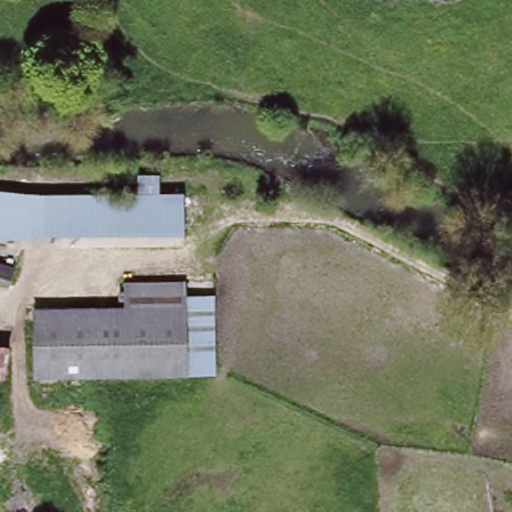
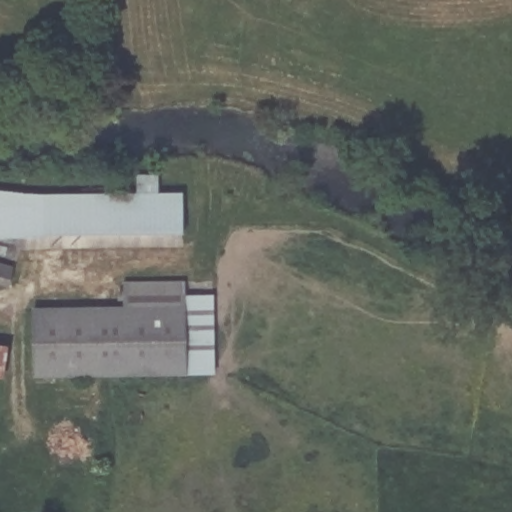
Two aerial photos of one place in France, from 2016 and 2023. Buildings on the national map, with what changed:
unchanged [(178,228),(0,244),(0,200),(173,185),(178,228)]
unchanged [(10,293),(0,290),(0,273),(14,277),(10,293)]
unchanged [(216,370),(38,374),(32,308),(123,307),(122,282),(186,277),(186,293),(214,293),(216,370)]
unchanged [(2,382),(0,382),(0,348),(10,350),(2,382)]

